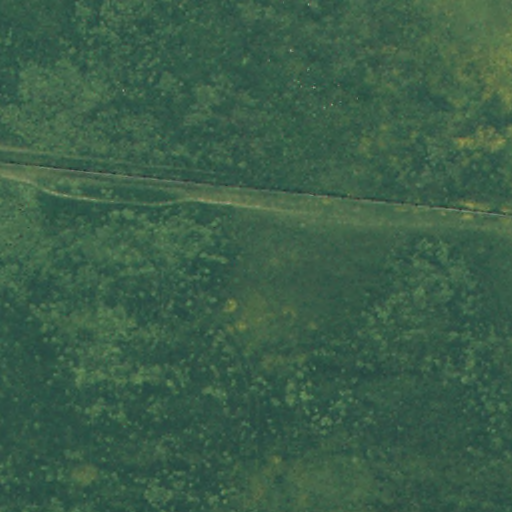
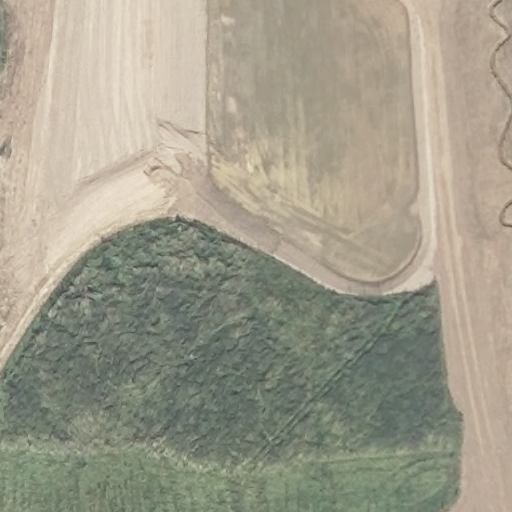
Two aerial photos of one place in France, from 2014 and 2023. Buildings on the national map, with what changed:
[]

